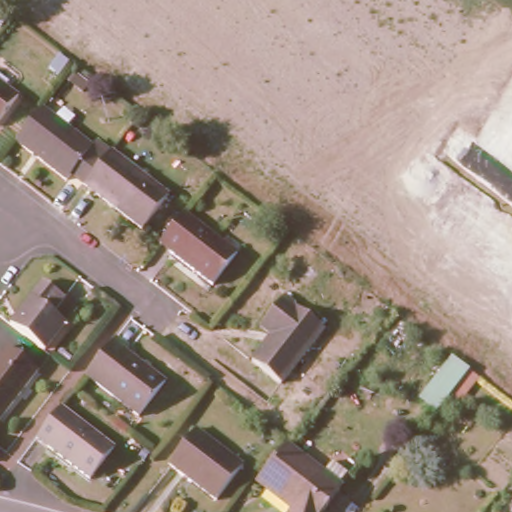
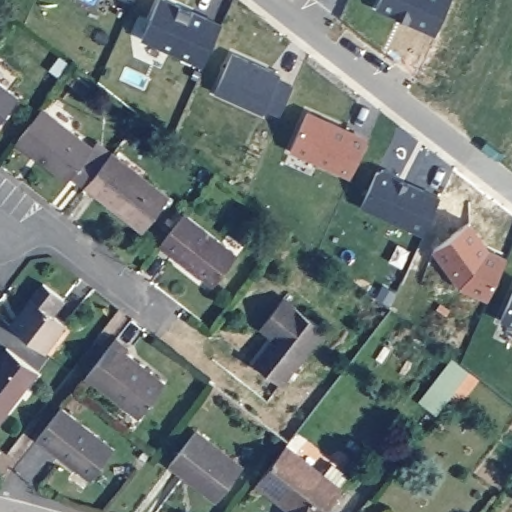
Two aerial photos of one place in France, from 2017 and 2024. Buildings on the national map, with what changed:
new [(131,0),(134,0),(134,1),(131,0)]
new [(160,0),(172,0),(222,23),(203,67),(142,40),(160,0)]
new [(377,8),(380,0),(450,0),(436,34),(377,8)]
new [(280,115),(265,109),(263,114),(214,91),(232,53),(280,74),(278,78),(294,83),(280,115)]
unchanged [(0,125),(0,77),(23,96),(0,125)]
new [(367,136),(351,177),(291,151),(309,109),(367,136)]
unchanged [(69,175),(64,180),(17,142),(41,111),(88,148),(91,144),(106,156),(83,186),(69,175)]
unchanged [(165,198),(141,231),(83,186),(106,156),(108,154),(165,198)]
new [(401,175),(397,184),(406,188),(409,182),(442,197),(424,236),(362,208),(381,166),(401,175)]
unchanged [(244,253),(220,285),(167,245),(192,212),(244,253)]
new [(460,284),(433,248),(469,221),(480,237),(486,245),(488,249),(506,257),(488,297),(460,284)]
unchanged [(46,286),(66,303),(53,318),(65,327),(45,354),(11,328),(33,301),(46,286)]
new [(512,291),(512,324),(500,318),(512,291)]
unchanged [(326,327),(282,384),(252,360),(272,334),(262,326),(285,296),(326,327)]
unchanged [(133,347),(128,353),(168,385),(142,418),(89,376),(121,336),(133,347)]
unchanged [(40,371),(0,421),(0,355),(8,345),(40,371)]
demolished [(414,398),(447,351),(470,369),(432,414),(414,398)]
new [(437,414),(420,401),(452,361),(468,374),(437,414)]
new [(447,401),(468,374),(477,381),(457,407),(447,401)]
unchanged [(117,450),(92,482),(38,439),(63,407),(117,450)]
unchanged [(196,428),(243,464),(217,498),(170,463),(196,428)]
unchanged [(318,471),(329,458),(352,478),(342,490),(345,492),(327,512),(293,512),(259,484),(288,447),(318,471)]

